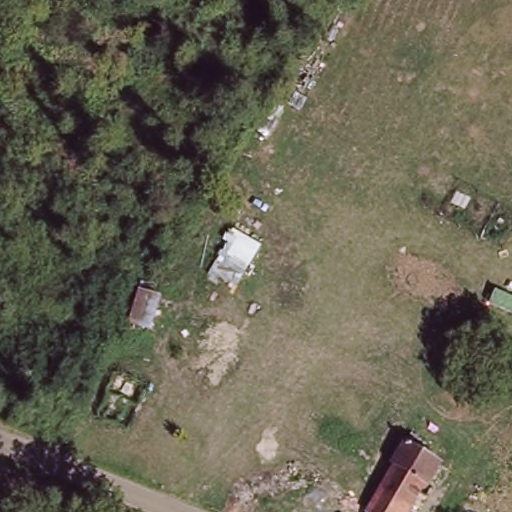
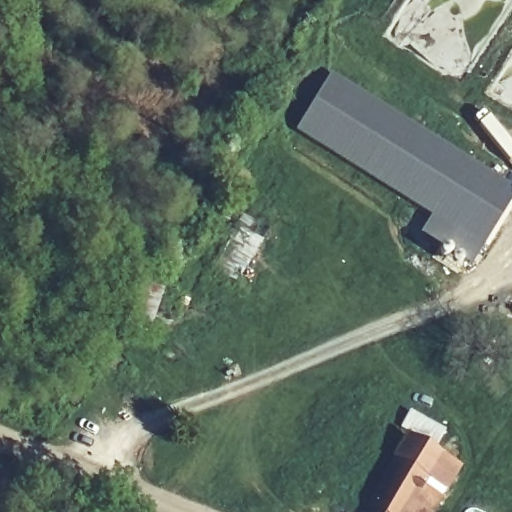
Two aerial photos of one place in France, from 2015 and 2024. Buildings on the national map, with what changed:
new [(512,199),(471,265),(421,233),(432,215),(296,133),(331,77),(512,189),(512,199)]
new [(263,242),(236,286),(211,272),(229,225),(263,242)]
unchanged [(409,512),(370,512),(394,466),(391,464),(409,432),(426,443),(421,452),(438,463),(409,512)]
new [(435,512),(409,512),(438,463),(421,452),(424,447),(463,470),(435,512)]

